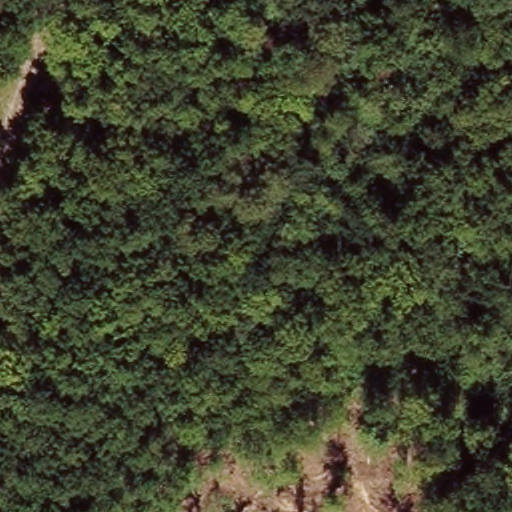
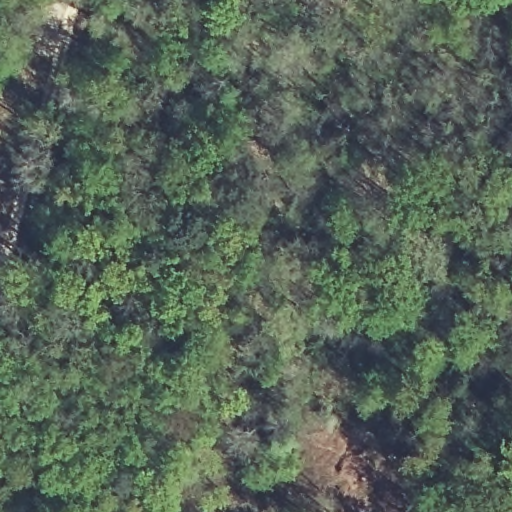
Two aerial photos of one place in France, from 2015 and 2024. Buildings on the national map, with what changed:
[]

